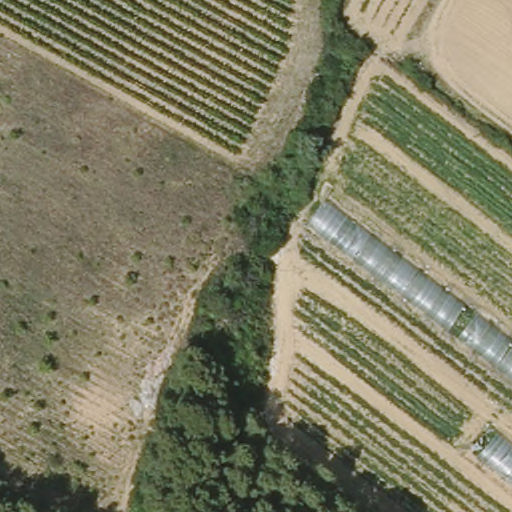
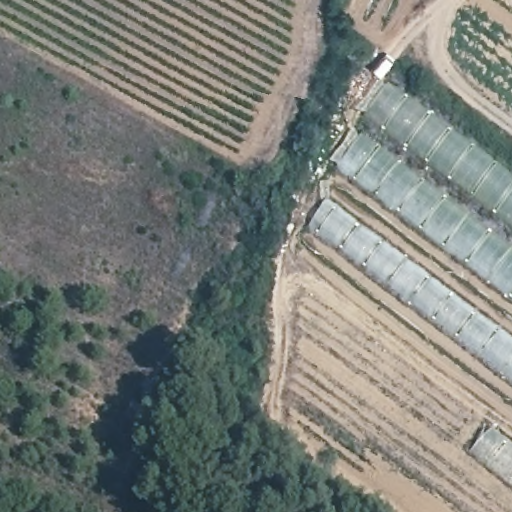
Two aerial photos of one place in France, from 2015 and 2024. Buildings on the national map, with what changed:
new [(512,175),(512,228),(363,116),(388,82),(512,175)]
new [(512,246),(512,298),(337,167),(362,133),(512,246)]
unchanged [(327,197),(466,304),(449,329),(310,222),(327,197)]
unchanged [(461,336),(476,313),(512,341),(512,375),(461,336)]
unchanged [(491,425),(512,442),(512,481),(471,449),(491,425)]

